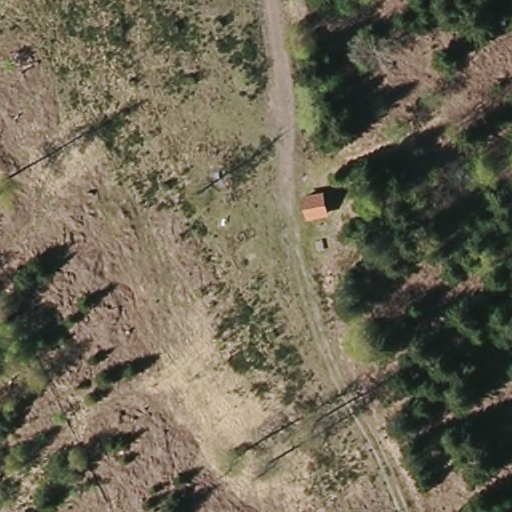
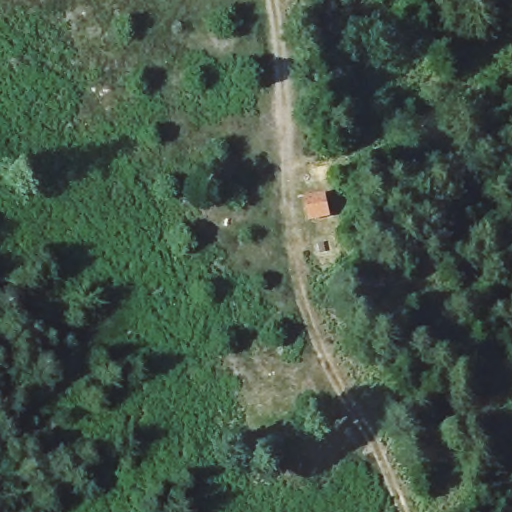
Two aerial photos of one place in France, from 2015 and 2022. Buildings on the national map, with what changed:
unchanged [(326,193),(331,217),(310,221),(304,197),(326,193)]

